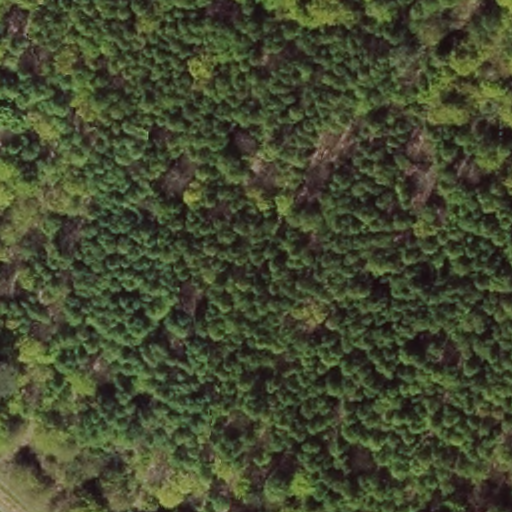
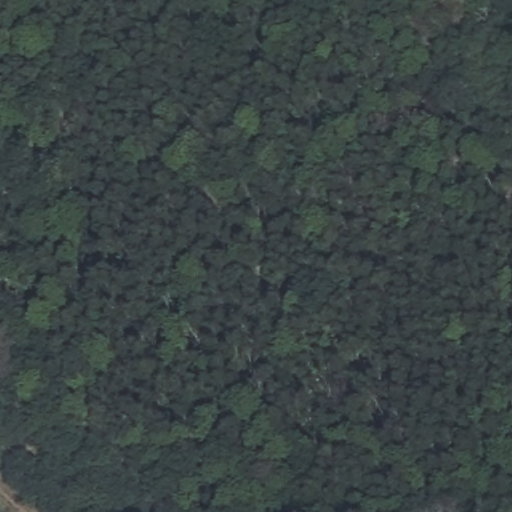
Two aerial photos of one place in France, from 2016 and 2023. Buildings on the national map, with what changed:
[]

